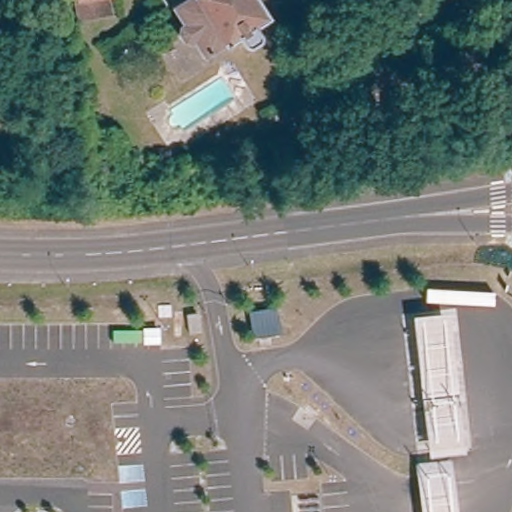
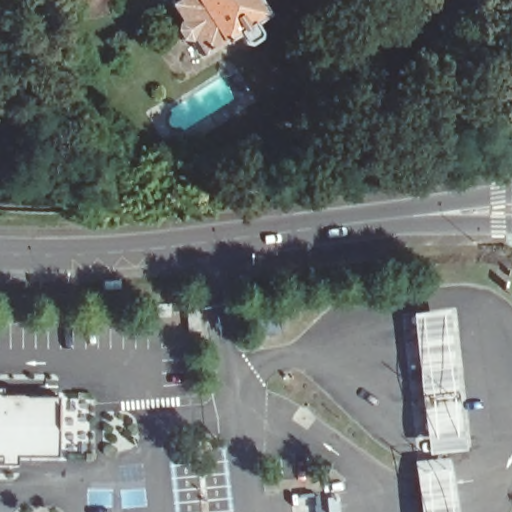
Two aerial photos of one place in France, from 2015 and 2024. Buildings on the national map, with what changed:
unchanged [(79,0),(111,0),(114,11),(82,17),(79,0)]
unchanged [(186,0),(255,0),(268,20),(254,30),(261,40),(260,45),(251,51),(247,50),(239,39),(204,61),(194,45),(190,48),(183,45),(178,38),(179,29),(182,27),(172,10),(186,0)]
unchanged [(451,311),(463,447),(426,450),(413,314),(451,311)]
new [(59,460),(0,459),(0,397),(59,398),(59,460)]
unchanged [(458,512),(423,512),(417,464),(451,459),(458,512)]

